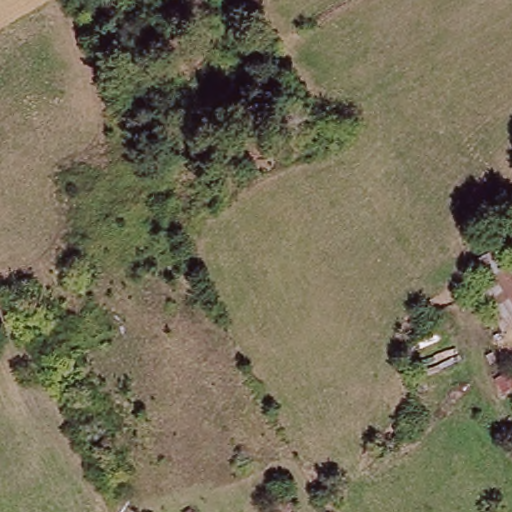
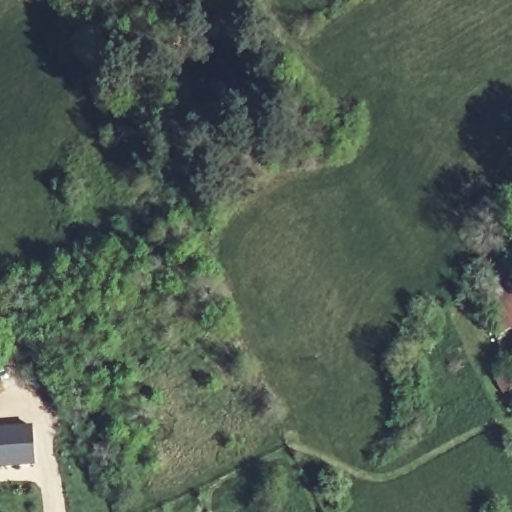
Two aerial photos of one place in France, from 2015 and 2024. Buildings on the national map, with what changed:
unchanged [(475,288),(482,285),(471,262),(496,247),(510,267),(512,267),(512,325),(500,331),(475,288)]
new [(0,428),(32,425),(35,465),(0,468),(0,428)]

